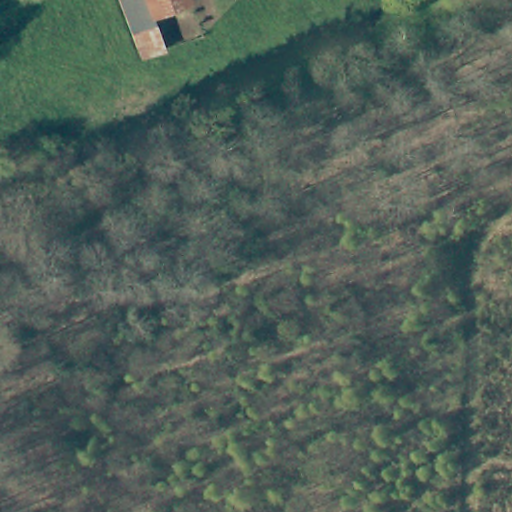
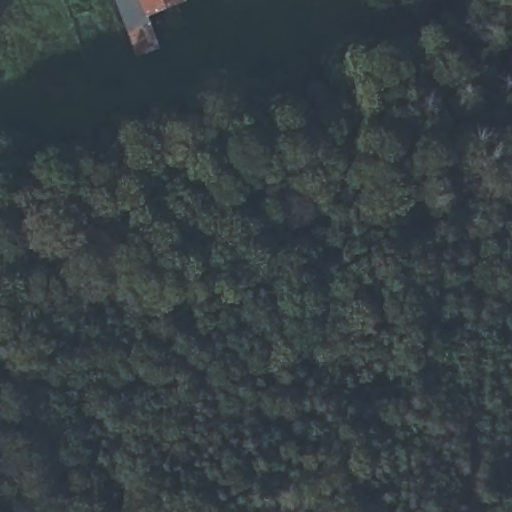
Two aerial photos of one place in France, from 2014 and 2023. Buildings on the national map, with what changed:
unchanged [(163,50),(141,59),(117,0),(142,0),(149,17),(163,50)]
unchanged [(188,0),(188,1),(149,17),(142,0),(188,0)]

